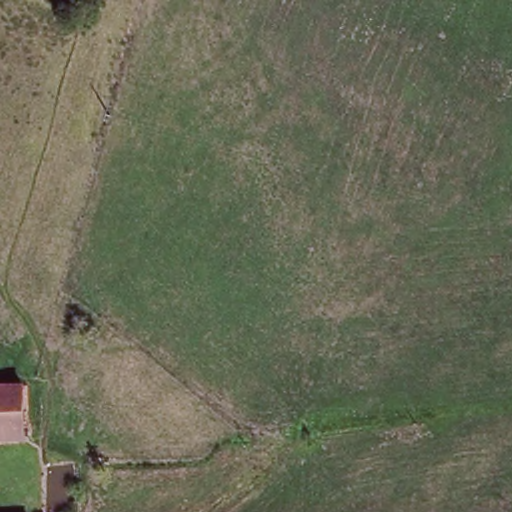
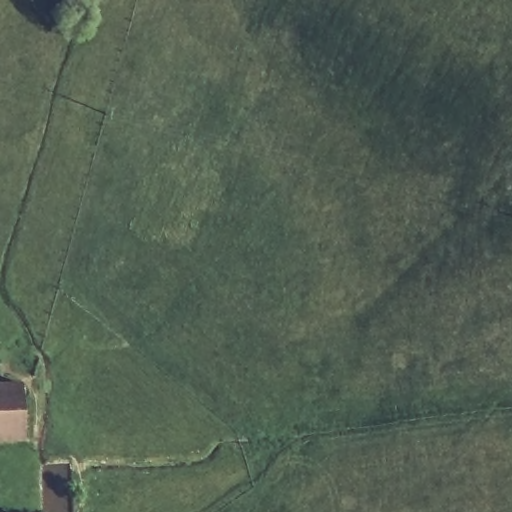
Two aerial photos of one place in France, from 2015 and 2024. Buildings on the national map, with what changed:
unchanged [(5,381),(22,380),(23,438),(0,439),(0,381),(5,381)]

